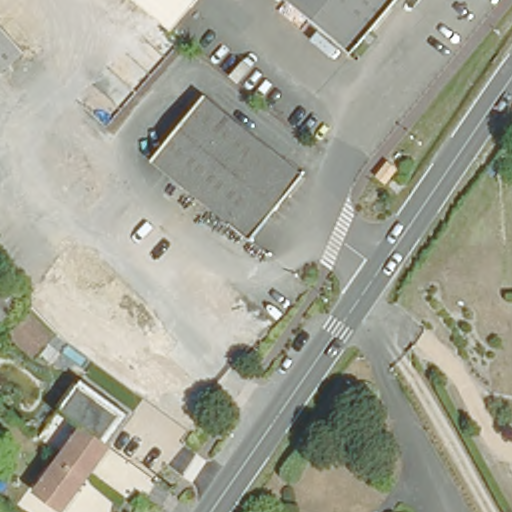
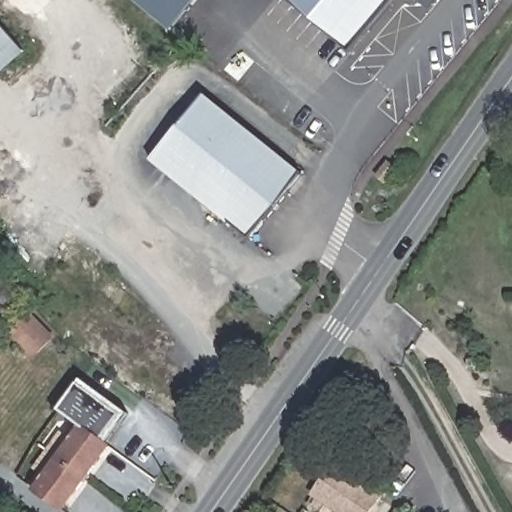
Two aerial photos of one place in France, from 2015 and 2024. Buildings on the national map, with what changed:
unchanged [(136,0),(182,0),(164,22),(136,0)]
unchanged [(298,0),(390,0),(354,45),(298,0)]
unchanged [(20,44),(0,63),(0,21),(20,44)]
unchanged [(153,160),(205,95),(302,171),(253,237),(153,160)]
unchanged [(392,165),(398,171),(392,177),(387,171),(392,165)]
unchanged [(21,282),(0,312),(0,267),(21,282)]
unchanged [(29,306),(56,335),(34,359),(5,332),(29,306)]
unchanged [(57,505),(29,488),(71,422),(47,407),(64,379),(67,374),(112,402),(115,404),(115,405),(112,409),(95,437),(98,439),(57,505)]
new [(311,496),(334,463),(382,496),(371,512),(335,512),(311,496)]

